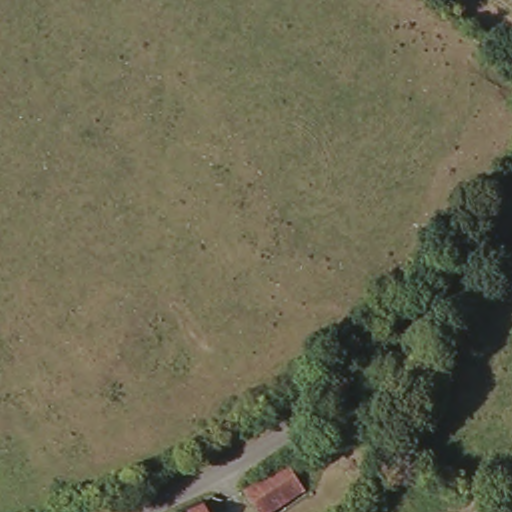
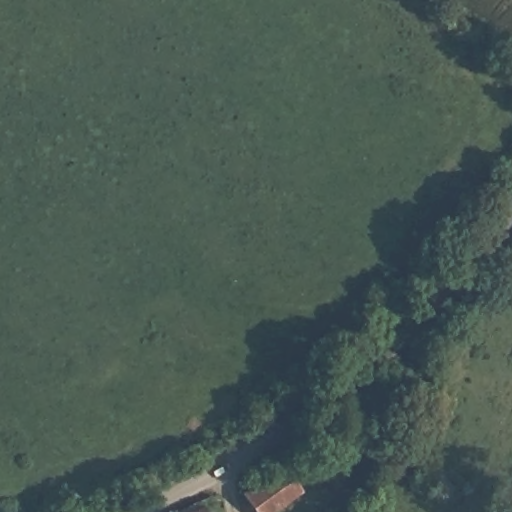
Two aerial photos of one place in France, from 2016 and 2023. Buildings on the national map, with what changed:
unchanged [(306,493),(278,512),(250,512),(239,493),(283,464),(306,493)]
unchanged [(202,512),(174,512),(177,511),(197,502),(202,512)]

